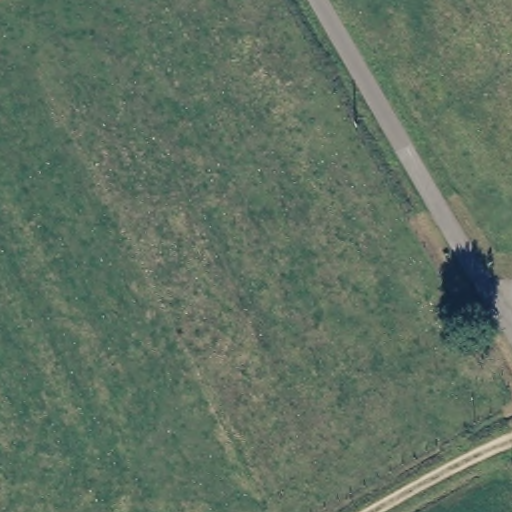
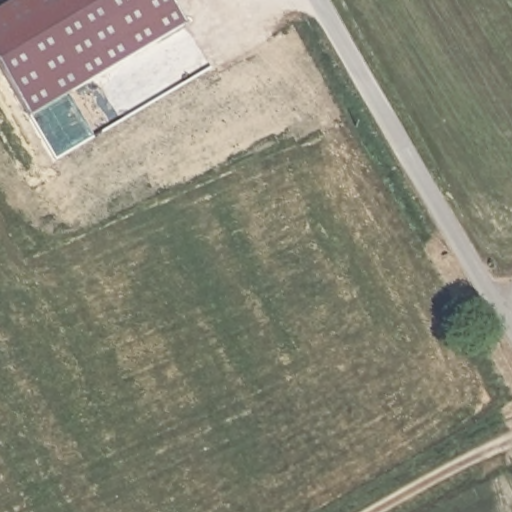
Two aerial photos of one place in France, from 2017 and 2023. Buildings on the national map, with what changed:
new [(164,0),(182,31),(26,121),(0,75),(0,16),(27,0),(164,0)]

